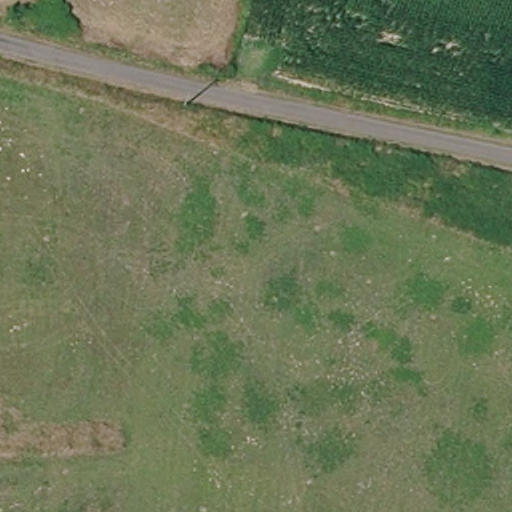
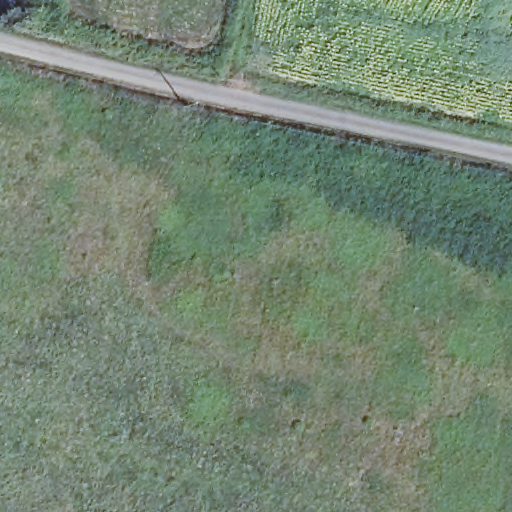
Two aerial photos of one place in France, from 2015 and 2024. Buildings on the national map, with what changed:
[]

